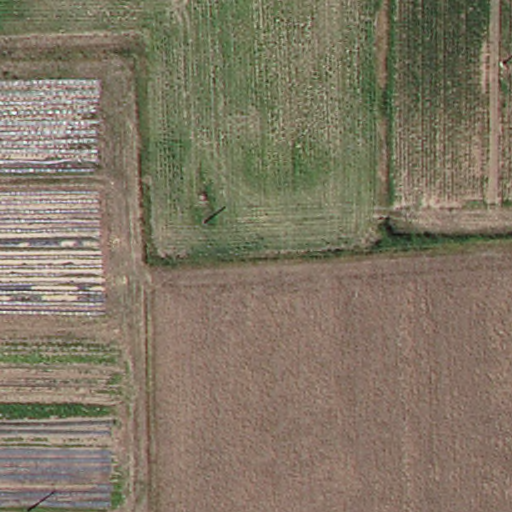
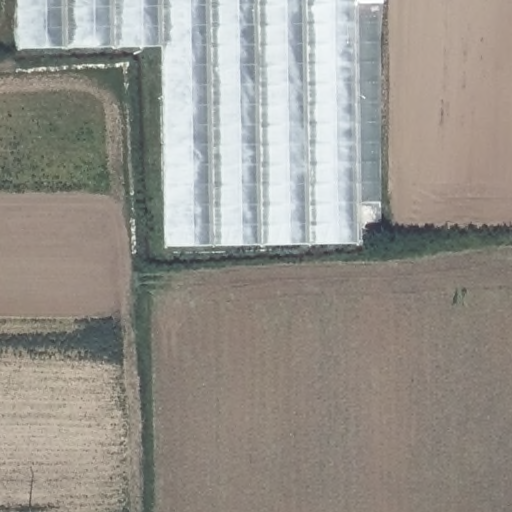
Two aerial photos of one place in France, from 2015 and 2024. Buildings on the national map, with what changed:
new [(382,223),(360,223),(360,243),(165,246),(161,45),(19,48),(19,0),(384,0),(382,223)]
demolished [(0,167),(0,96),(90,94),(93,165),(0,167)]

